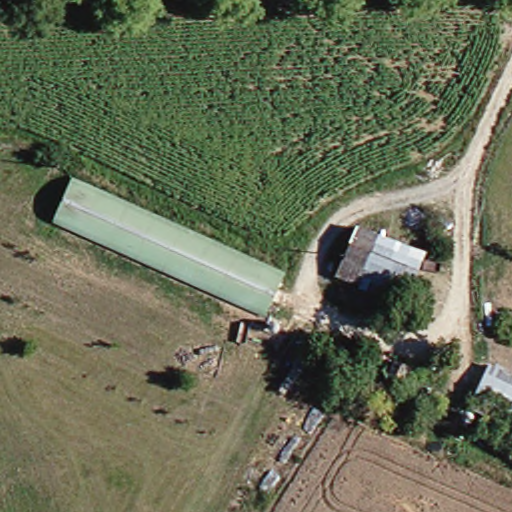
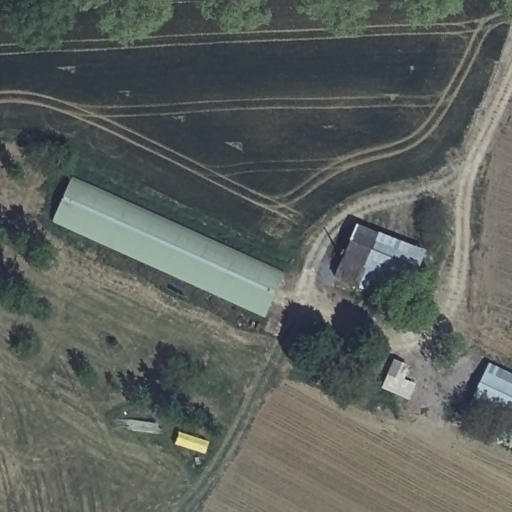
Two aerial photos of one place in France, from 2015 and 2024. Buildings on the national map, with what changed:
unchanged [(292,275),(270,316),(57,223),(78,177),(292,275)]
unchanged [(343,272),(367,223),(432,254),(410,304),(343,272)]
unchanged [(426,365),(421,377),(432,382),(426,396),(398,383),(406,370),(398,365),(403,355),(426,365)]
unchanged [(497,366),(512,373),(512,424),(477,407),(497,366)]

